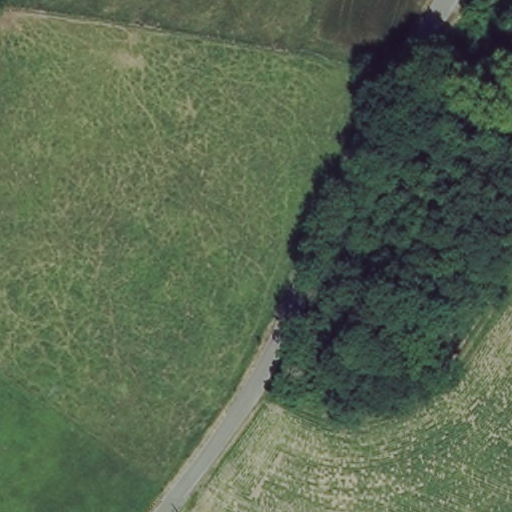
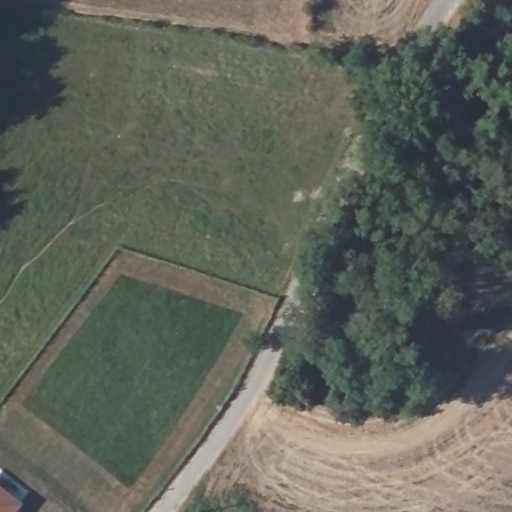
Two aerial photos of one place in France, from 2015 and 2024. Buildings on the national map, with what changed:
new [(23,503),(16,512),(0,512),(0,486),(23,503)]

